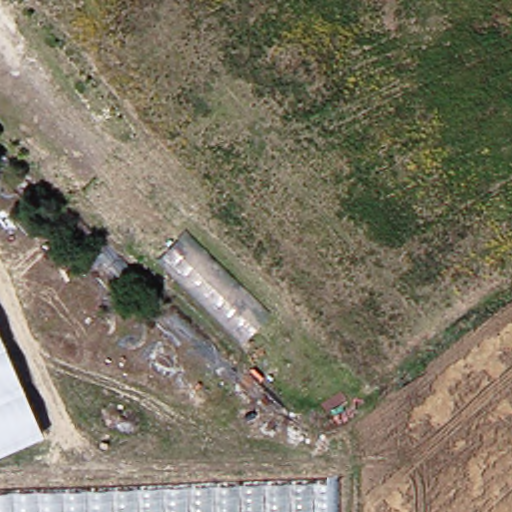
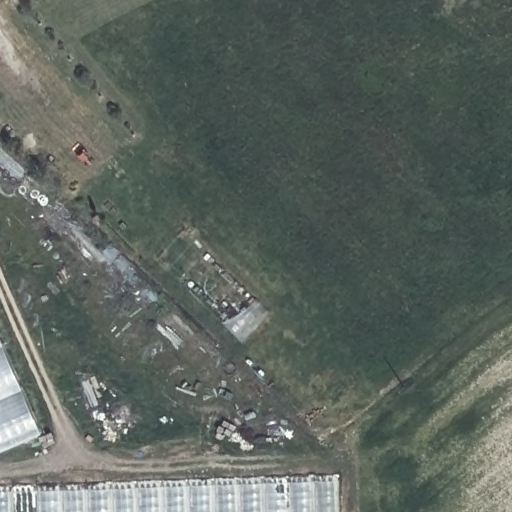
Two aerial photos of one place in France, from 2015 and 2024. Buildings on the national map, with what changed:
unchanged [(0,357),(32,431),(0,445),(0,357)]
unchanged [(325,512),(0,512),(0,491),(325,476),(325,512)]

